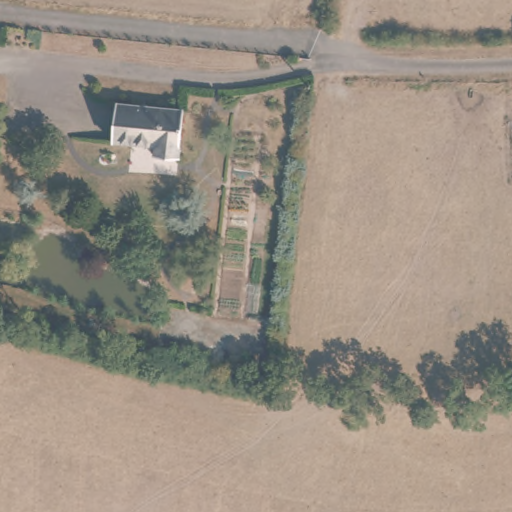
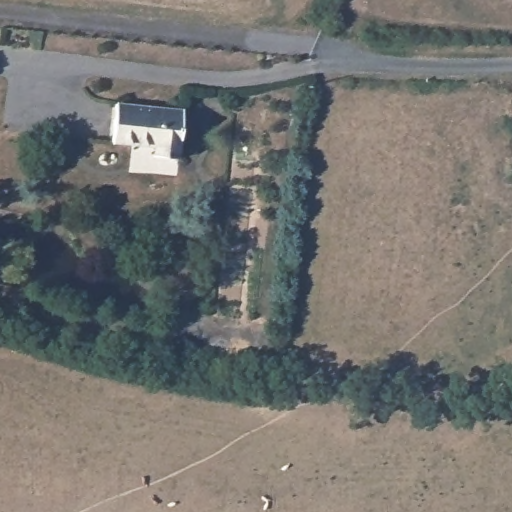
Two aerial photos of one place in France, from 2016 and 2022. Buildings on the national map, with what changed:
unchanged [(186,110),(180,159),(155,156),(156,142),(113,136),(118,101),(186,110)]

